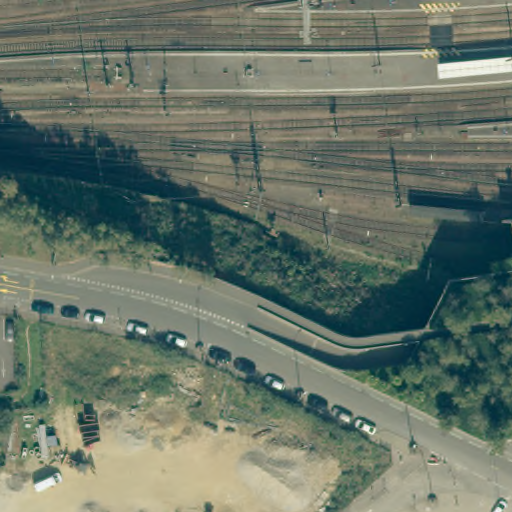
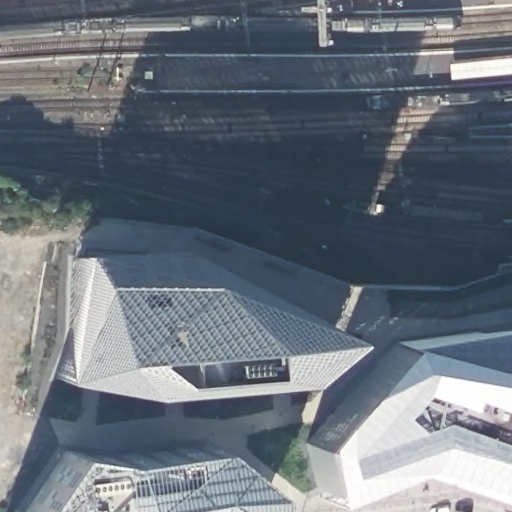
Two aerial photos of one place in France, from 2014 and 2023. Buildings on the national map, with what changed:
new [(447,63),(512,56),(512,71),(449,79),(447,63)]
demolished [(412,222),(413,213),(486,221),(485,230),(412,222)]
new [(332,331),(290,376),(139,389),(57,374),(77,250),(164,249),(332,331)]
new [(391,341),(512,324),(512,494),(410,462),(321,497),(309,443),(391,341)]
demolished [(128,399),(76,391),(67,330),(119,337),(128,399)]
demolished [(261,437),(260,439),(218,419),(208,415),(207,414),(206,406),(202,359),(224,370),(275,394),(261,437)]
demolished [(316,448),(296,437),(288,450),(273,442),(261,437),(275,394),(329,421),(316,448)]
demolished [(95,512),(16,512),(4,422),(83,413),(95,512)]
demolished [(369,473),(364,465),(363,466),(342,455),(337,460),(330,456),(316,448),(329,421),(384,448),(383,460),(369,473)]
new [(63,452),(109,457),(203,444),(261,490),(257,512),(22,512),(63,452)]
demolished [(288,450),(297,449),(304,493),(320,477),(340,500),(327,512),(282,512),(277,477),(274,452),(288,450)]
demolished [(340,500),(320,477),(316,472),(330,456),(337,460),(342,455),(363,466),(364,465),(369,473),(340,500)]
demolished [(217,512),(145,512),(141,492),(167,488),(167,482),(191,480),(193,487),(215,484),(217,512)]

